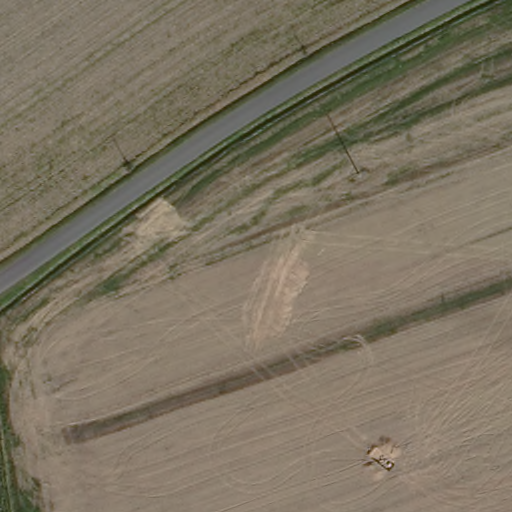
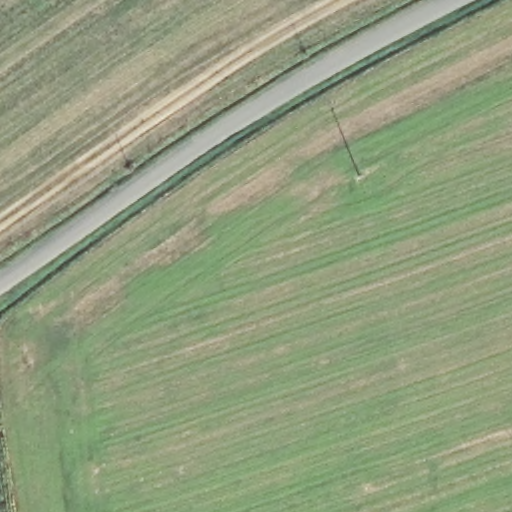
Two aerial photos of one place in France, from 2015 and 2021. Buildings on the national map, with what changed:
[]

